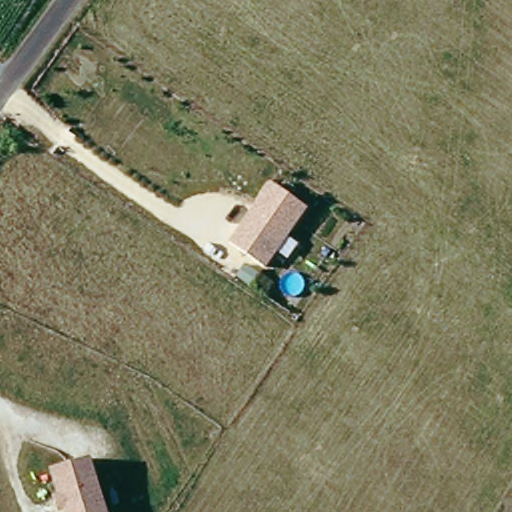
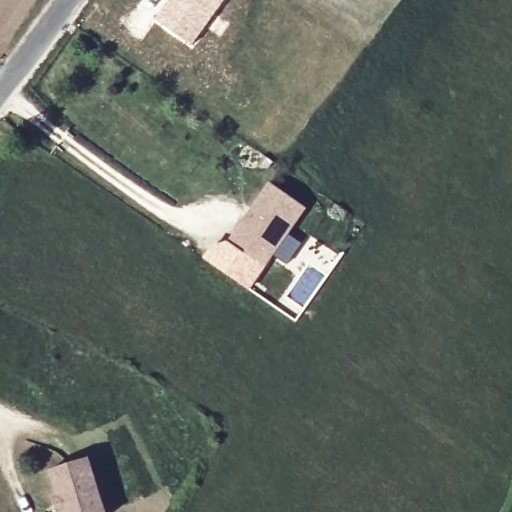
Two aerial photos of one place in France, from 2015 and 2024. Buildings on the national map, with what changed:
new [(168,0),(225,0),(191,46),(154,19),(168,0)]
unchanged [(308,209),(265,269),(229,242),(270,182),(308,209)]
unchanged [(89,460),(105,512),(65,512),(49,471),(89,460)]

